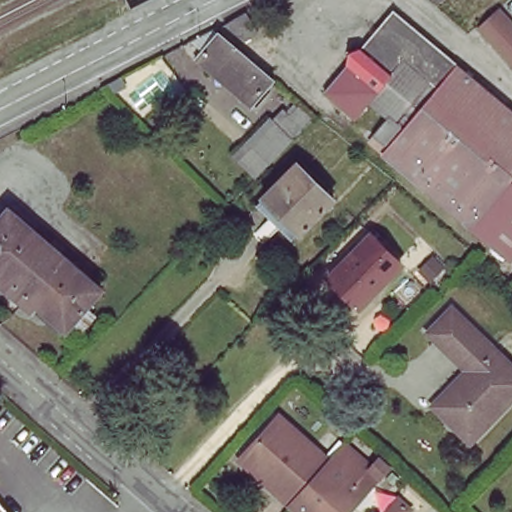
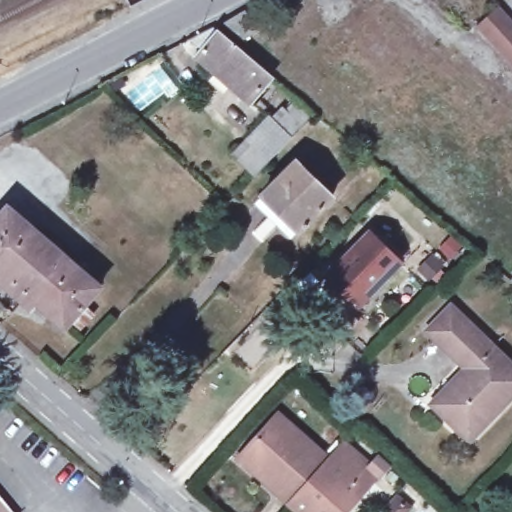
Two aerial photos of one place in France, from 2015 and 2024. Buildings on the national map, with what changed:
demolished [(350,59),(350,46),(362,44),(396,5),(458,58),(457,60),(512,108),(512,254),(385,149),(389,142),(374,130),(389,111),(369,95),(355,110),(327,85),(350,59)]
unchanged [(493,11),(495,10),(512,28),(512,65),(477,25),(493,11)]
unchanged [(249,11),(261,32),(248,41),(228,24),(249,11)]
unchanged [(253,101),(200,56),(204,51),(189,39),(213,25),(221,31),(220,33),(272,79),(253,101)]
unchanged [(309,113),(250,172),(229,149),(261,113),(267,116),(290,100),(309,113)]
unchanged [(317,176),(334,192),(299,227),(287,216),(266,237),(255,226),(276,205),(264,192),(298,158),(317,176)]
unchanged [(95,289),(62,330),(0,277),(0,211),(1,210),(95,289)]
unchanged [(373,235),(400,261),(358,305),(327,275),(370,232),(373,235)]
unchanged [(450,306),(512,366),(512,395),(470,440),(435,405),(471,368),(430,327),(450,306)]
unchanged [(240,460),(280,415),(330,461),(291,505),(240,460)]
unchanged [(330,461),(345,445),(369,467),(377,458),(386,467),(379,475),(346,512),(298,512),(291,505),(330,461)]
unchanged [(0,512),(0,508),(3,512),(0,512)]

